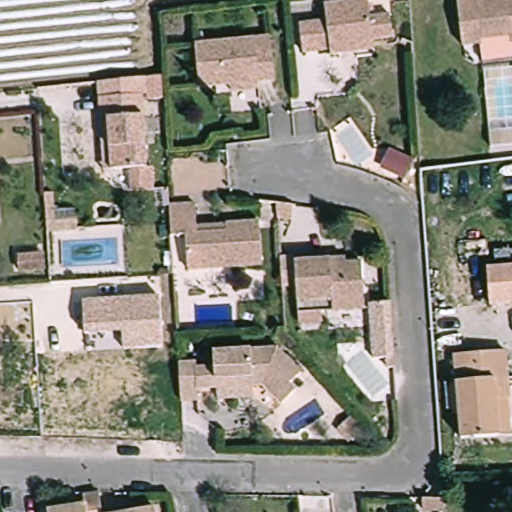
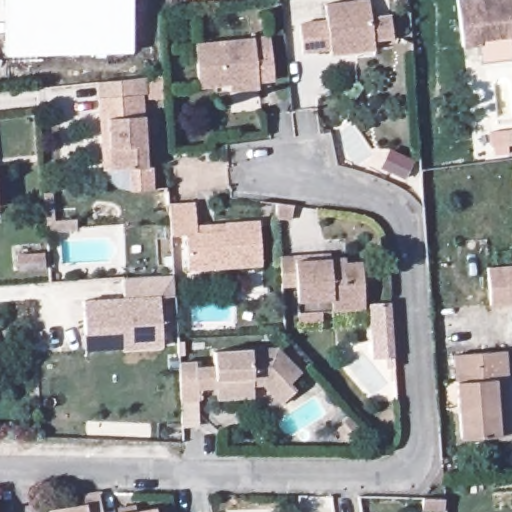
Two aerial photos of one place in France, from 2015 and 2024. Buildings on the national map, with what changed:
new [(132,52),(6,55),(4,0),(130,0),(132,52)]
unchanged [(351,55),(334,57),(333,51),(308,54),(305,23),(317,22),(330,21),(330,3),(363,0),(372,0),(374,12),(395,11),(396,40),(379,41),(380,53),(351,55)]
unchanged [(484,40),(467,43),(460,0),(512,0),(512,49),(486,53),(484,40)]
unchanged [(239,87),(237,77),(205,79),(202,39),(258,34),(258,44),(276,44),(278,74),(263,75),(265,85),(239,87)]
unchanged [(137,196),(134,170),(106,172),(105,146),(112,144),(109,118),(102,121),(99,84),(168,79),(168,103),(148,105),(161,194),(137,196)]
unchanged [(512,129),(512,144),(490,146),(489,131),(512,129)]
unchanged [(291,200),(305,202),(302,217),(288,214),(288,200),(291,200)]
unchanged [(198,220),(229,220),(261,219),(261,261),(191,263),(191,232),(171,233),(167,202),(198,202),(198,220)]
unchanged [(65,215),(65,223),(81,222),(81,232),(53,234),(51,215),(65,215)]
unchanged [(50,254),(51,274),(21,276),(21,256),(50,254)]
unchanged [(302,315),(302,288),(288,288),(288,257),(340,257),(340,262),(353,262),(353,267),(368,267),(369,314),(326,314),(326,324),(302,324),(302,315)]
unchanged [(494,301),(491,264),(512,263),(512,300),(494,301)]
unchanged [(160,295),(163,348),(123,353),(122,334),(88,335),(85,300),(160,295)]
new [(395,369),(395,359),(382,360),(381,337),(378,306),(399,304),(400,336),(403,369),(395,369)]
unchanged [(220,401),(220,392),(200,393),(201,402),(184,403),(181,365),(198,364),(198,370),(215,369),(214,355),(279,352),(301,376),(290,386),(297,393),(282,406),(265,388),(254,389),(255,399),(220,401)]
unchanged [(512,355),(512,405),(507,406),(507,441),(473,443),(466,359),(512,355)]
unchanged [(371,422),(354,437),(342,423),(359,408),(371,422)]
unchanged [(429,506),(429,489),(453,488),(454,506),(429,506)]
unchanged [(81,512),(80,500),(101,494),(104,512),(81,512)]

